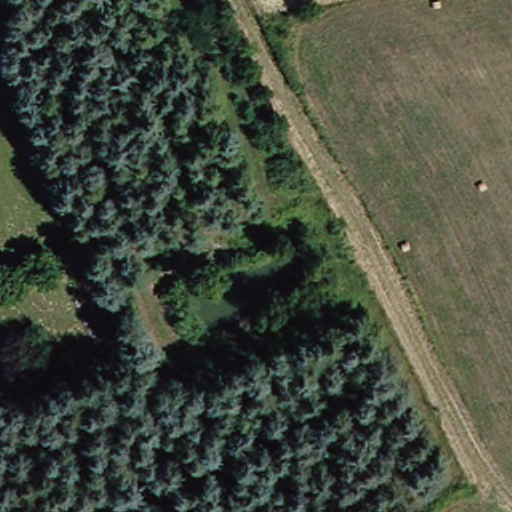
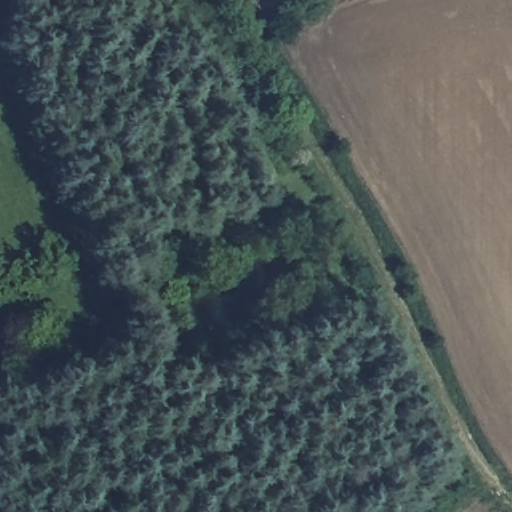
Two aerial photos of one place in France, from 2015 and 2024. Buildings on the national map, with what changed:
unchanged [(6,395),(0,397),(0,379),(6,395)]

